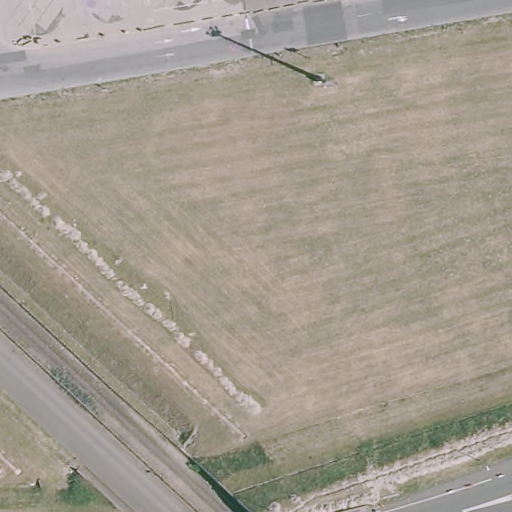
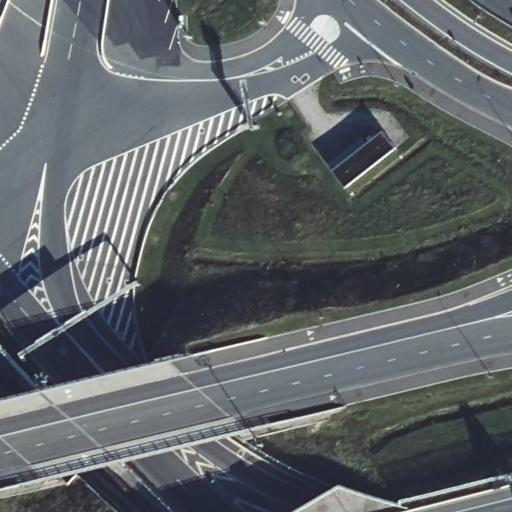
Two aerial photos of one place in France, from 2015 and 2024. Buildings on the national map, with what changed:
new [(382,133),(394,151),(343,190),(330,173),(382,133)]

